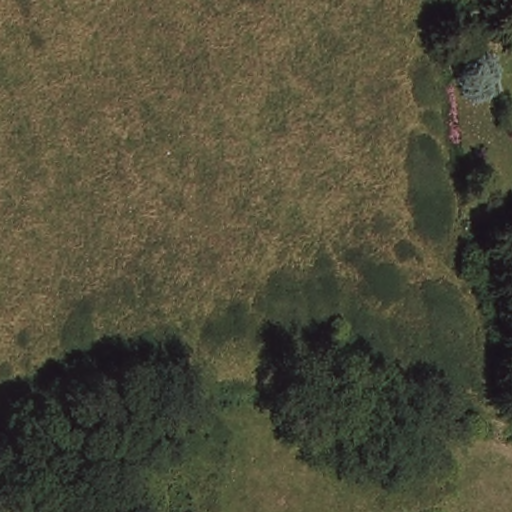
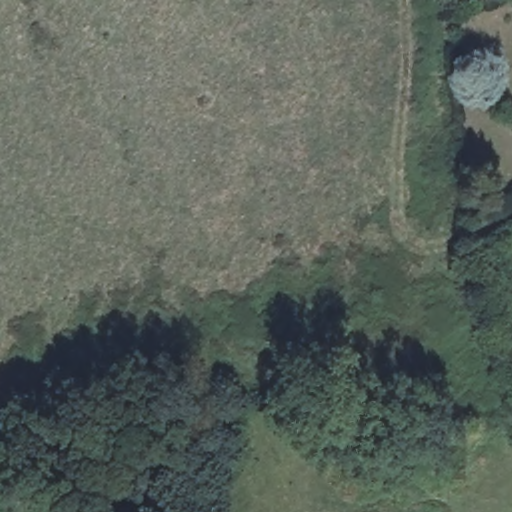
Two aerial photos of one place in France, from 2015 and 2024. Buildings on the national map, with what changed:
[]

